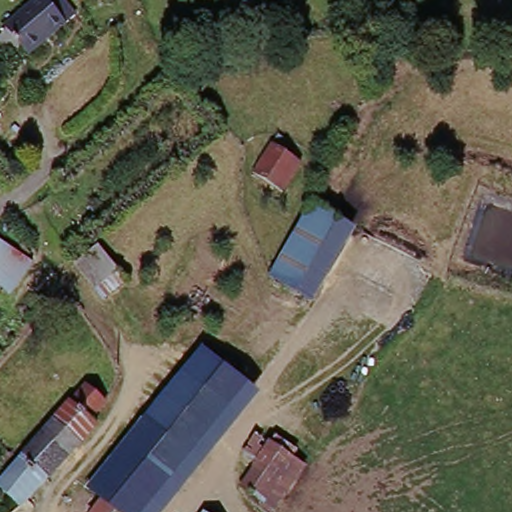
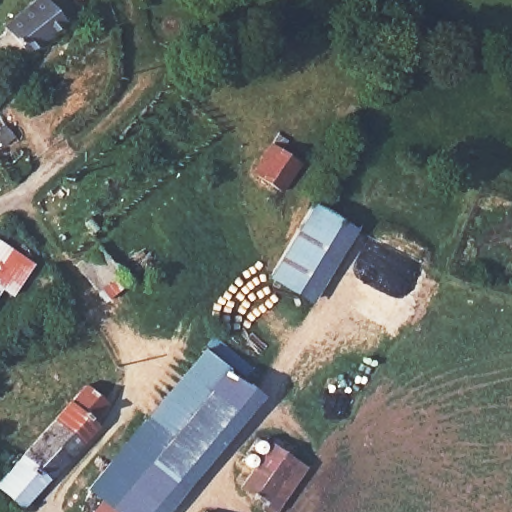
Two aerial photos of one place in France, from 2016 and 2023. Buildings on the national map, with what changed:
unchanged [(76,21),(33,57),(28,52),(14,62),(0,44),(0,39),(48,0),(61,0),(76,21)]
unchanged [(299,167),(280,195),(252,176),(271,147),(299,167)]
unchanged [(310,207),(348,230),(306,302),(267,279),(310,207)]
unchanged [(23,245),(13,249),(6,235),(15,230),(23,245)]
unchanged [(29,265),(9,299),(0,296),(0,245),(29,265)]
unchanged [(96,249),(127,288),(102,307),(72,267),(96,249)]
unchanged [(88,487),(204,349),(264,396),(165,512),(114,512),(91,512),(101,497),(88,487)]
unchanged [(43,425),(88,393),(95,406),(87,412),(94,423),(67,451),(43,425)]
unchanged [(7,510),(0,502),(0,470),(4,466),(43,425),(67,451),(7,510)]
unchanged [(256,472),(241,460),(259,441),(272,452),(291,467),(301,475),(273,512),(263,512),(258,508),(239,493),(256,472)]

